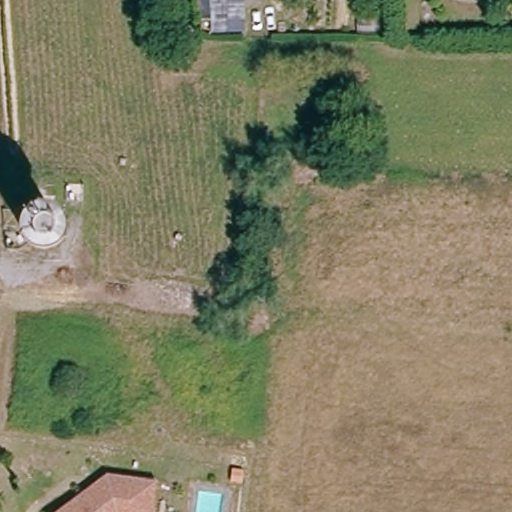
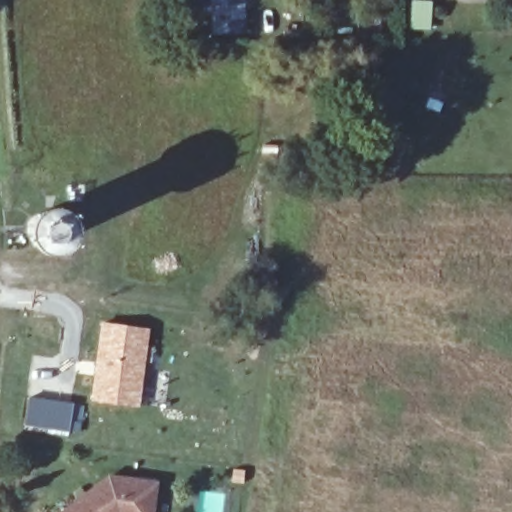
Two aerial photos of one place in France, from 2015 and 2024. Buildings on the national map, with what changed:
unchanged [(211,35),(209,0),(240,0),(243,35),(211,35)]
new [(146,330),(137,404),(93,399),(103,325),(146,330)]
new [(72,404),(68,431),(24,424),(28,398),(72,404)]
unchanged [(97,485),(108,476),(155,481),(152,501),(151,512),(61,512),(86,493),(97,485)]

